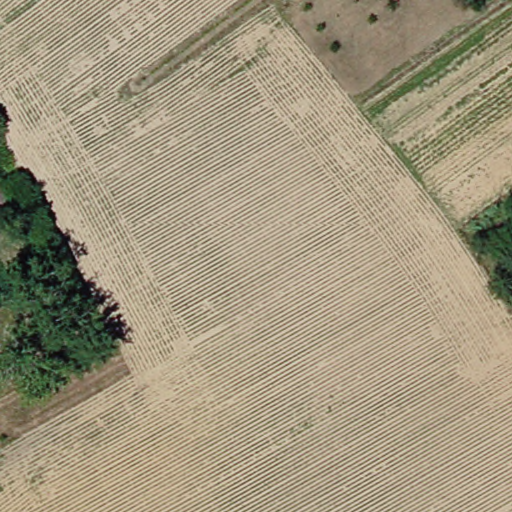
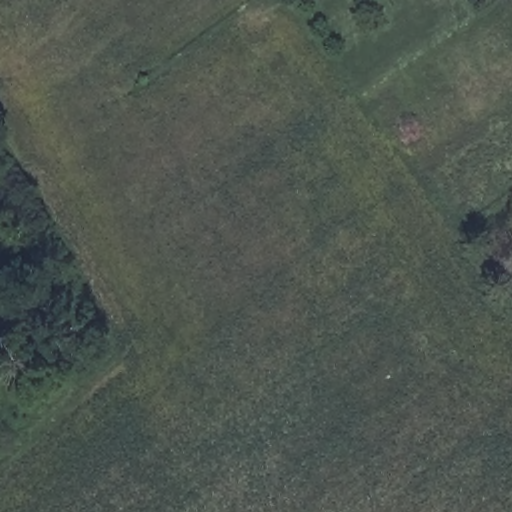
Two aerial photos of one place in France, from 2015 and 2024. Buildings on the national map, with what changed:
[]

